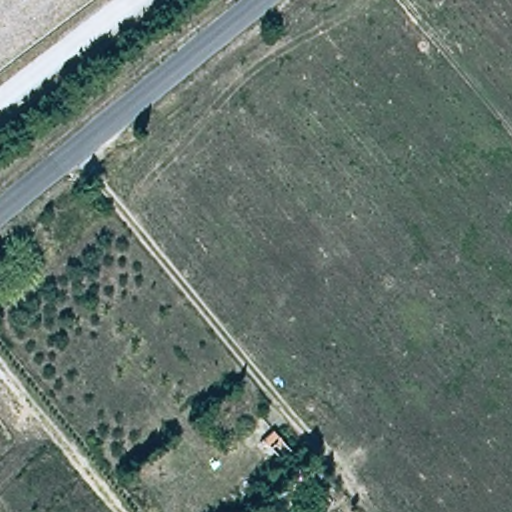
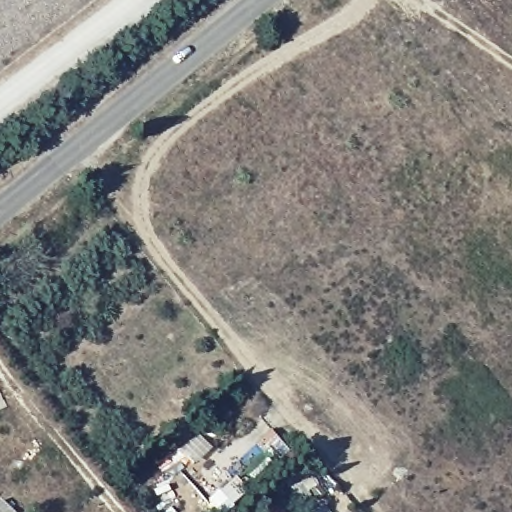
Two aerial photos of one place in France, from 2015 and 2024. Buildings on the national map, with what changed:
unchanged [(267,436),(295,465),(279,477),(250,448),(267,436)]

